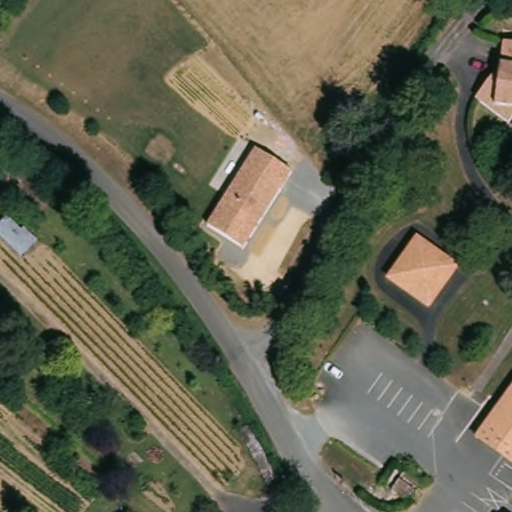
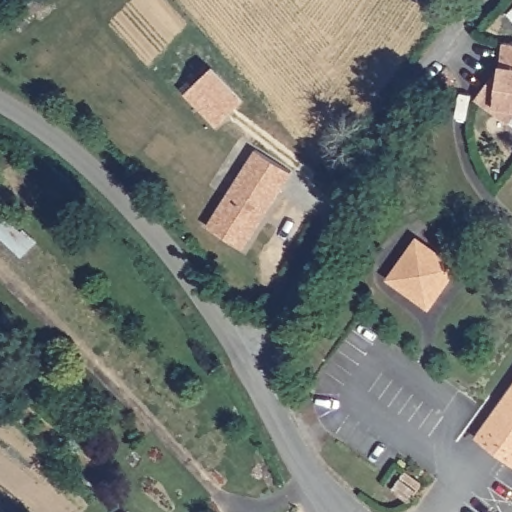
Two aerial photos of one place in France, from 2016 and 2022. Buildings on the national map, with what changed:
unchanged [(512,124),(481,104),(506,66),(509,44),(512,44),(512,124)]
new [(185,94),(211,67),(242,100),(216,125),(185,94)]
unchanged [(290,170),(243,249),(205,224),(253,149),(290,170)]
unchanged [(458,265),(426,308),(386,278),(419,234),(458,265)]
unchanged [(512,386),(512,466),(474,439),(512,386)]

